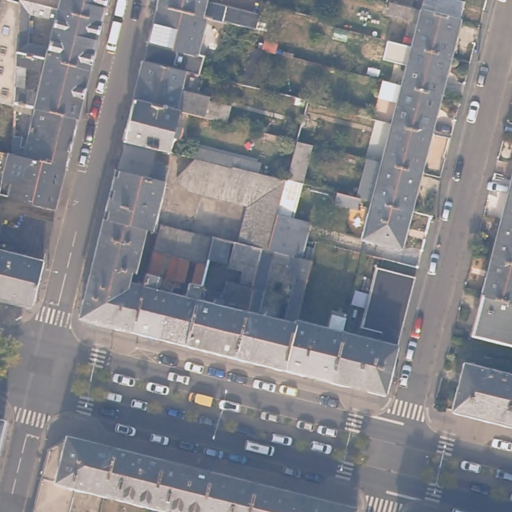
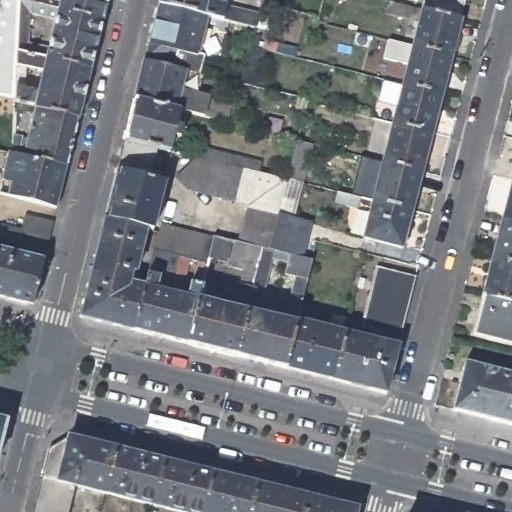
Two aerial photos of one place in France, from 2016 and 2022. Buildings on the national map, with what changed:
unchanged [(16,47),(15,61),(14,84),(14,97),(13,100),(0,97),(0,0),(18,0),(16,47)]
unchanged [(58,4),(59,0),(106,0),(102,14),(58,4)]
unchanged [(144,56),(157,0),(159,0),(228,17),(225,30),(217,28),(213,21),(204,19),(196,50),(202,51),(199,69),(199,70),(185,66),(144,56)]
unchanged [(228,17),(159,0),(226,0),(259,8),(255,25),(228,17)]
unchanged [(412,41),(421,6),(423,0),(463,0),(459,16),(460,16),(451,51),(412,41)]
unchanged [(46,54),(58,4),(102,14),(90,64),(46,54)]
unchanged [(441,90),(402,80),(412,41),(451,51),(441,90)]
unchanged [(14,97),(14,84),(37,89),(42,67),(15,61),(16,47),(46,54),(90,64),(79,111),(14,97)]
unchanged [(179,106),(134,95),(144,56),(185,66),(177,99),(200,104),(199,111),(179,106)]
unchanged [(431,128),(392,119),(402,80),(441,90),(431,128)]
unchanged [(152,226),(146,225),(105,214),(116,165),(124,136),(134,95),(179,106),(175,121),(182,122),(179,134),(172,131),(169,147),(156,144),(153,155),(169,159),(152,226)]
unchanged [(10,150),(10,149),(11,130),(24,134),(20,146),(23,147),(32,107),(13,103),(13,100),(14,97),(79,111),(66,162),(10,150)]
unchanged [(421,167),(382,157),(392,119),(431,128),(421,167)]
unchanged [(267,245),(262,244),(240,239),(249,200),(240,188),(232,195),(220,182),(211,190),(199,177),(191,185),(177,172),(196,154),(190,152),(192,141),(261,159),(260,169),(286,175),(276,211),(267,245)]
unchanged [(0,189),(0,180),(8,148),(10,149),(10,150),(66,162),(56,203),(0,189)]
unchanged [(382,157),(421,167),(412,206),(372,196),(382,157)]
unchanged [(360,209),(339,204),(341,194),(362,199),(360,209)]
unchanged [(412,206),(402,243),(362,234),(372,196),(412,206)]
unchanged [(512,221),(506,220),(512,199),(512,221)]
unchanged [(310,220),(301,254),(267,245),(276,211),(310,220)]
unchanged [(17,244),(17,242),(0,238),(0,225),(0,223),(21,228),(25,214),(53,221),(46,251),(17,244)]
unchanged [(80,313),(105,214),(146,225),(135,268),(130,267),(128,278),(144,282),(134,326),(80,313)]
unchanged [(180,277),(180,283),(172,281),(167,280),(169,275),(166,274),(172,250),(161,248),(153,245),(157,227),(159,220),(212,234),(213,232),(230,236),(225,258),(207,255),(206,259),(198,256),(189,255),(184,278),(180,277)]
unchanged [(512,221),(512,263),(497,259),(506,220),(512,221)]
unchanged [(301,254),(310,255),(306,275),(285,271),(288,258),(271,254),(259,311),(267,313),(268,307),(275,308),(274,315),(284,317),(290,292),(301,295),(296,316),(284,363),(236,352),(252,283),(262,244),(267,245),(301,254)]
unchanged [(134,326),(144,282),(153,245),(161,248),(156,271),(159,272),(155,285),(171,288),(160,333),(134,326)]
unchanged [(44,261),(34,300),(25,303),(0,297),(0,250),(44,261)]
unchanged [(160,333),(171,288),(186,292),(190,278),(192,279),(198,256),(206,259),(197,295),(187,340),(160,333)]
unchanged [(512,263),(512,302),(487,296),(497,259),(512,263)]
unchanged [(386,390),(332,376),(343,328),(382,338),(385,328),(362,322),(377,263),(415,273),(386,390)]
unchanged [(187,340),(197,295),(215,300),(215,295),(222,297),(227,278),(252,283),(236,352),(187,340)]
unchanged [(512,346),(477,337),(487,296),(512,302),(512,346)]
unchanged [(284,363),(296,316),(343,328),(332,376),(284,363)]
unchanged [(466,364),(512,375),(512,426),(454,411),(466,364)]
unchanged [(2,422),(0,432),(0,421),(2,422)]
unchanged [(75,487),(69,512),(33,512),(48,449),(66,438),(115,450),(104,494),(75,487)]
unchanged [(152,506),(104,494),(115,450),(163,462),(152,506)]
unchanged [(177,512),(152,506),(163,462),(211,474),(202,512),(177,512)]
unchanged [(256,485),(249,512),(202,512),(211,474),(256,485)]
unchanged [(303,512),(249,512),(256,485),(306,497),(303,512)]
unchanged [(354,512),(303,512),(306,497),(355,510),(354,512)]

